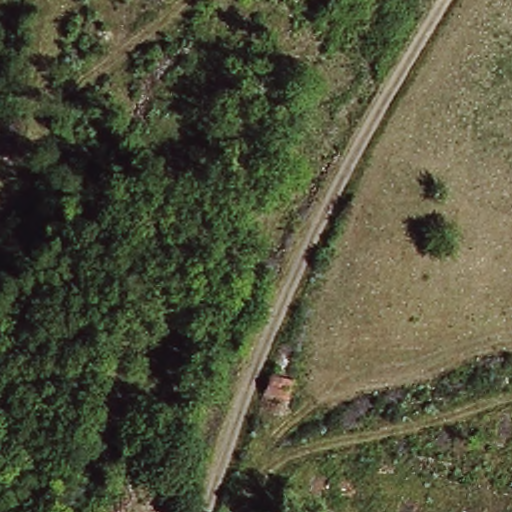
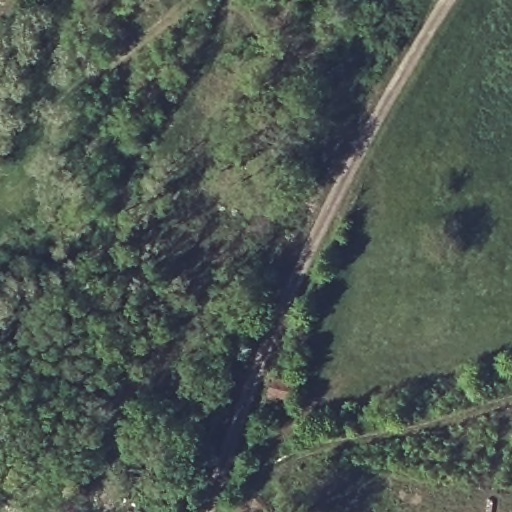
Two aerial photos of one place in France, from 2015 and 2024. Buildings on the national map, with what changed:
unchanged [(296,392),(265,389),(270,371),(299,375),(296,392)]

